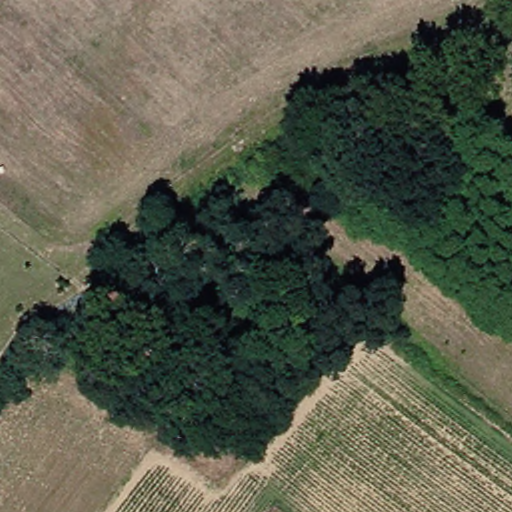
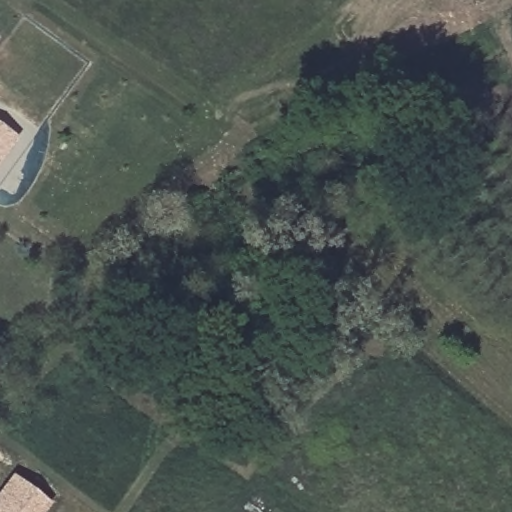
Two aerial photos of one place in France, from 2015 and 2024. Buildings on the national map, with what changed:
new [(17,138),(0,161),(0,125),(17,138)]
new [(45,512),(0,512),(0,490),(11,475),(51,504),(45,512)]

